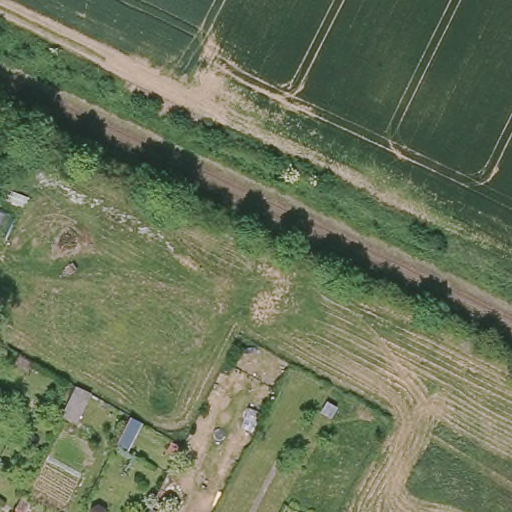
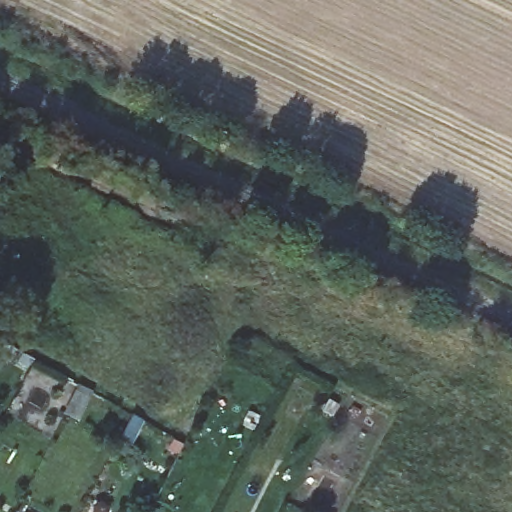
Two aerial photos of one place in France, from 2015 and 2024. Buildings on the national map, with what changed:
[]

